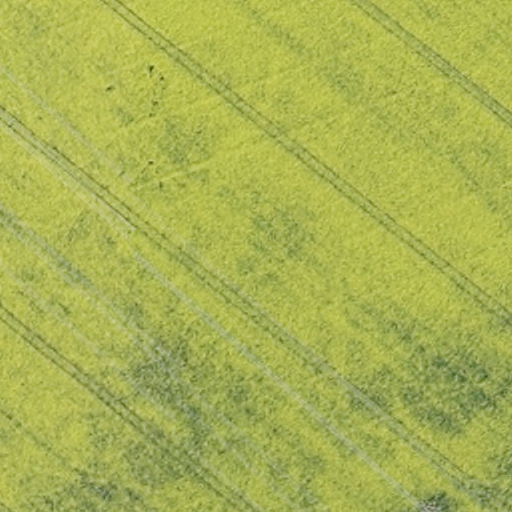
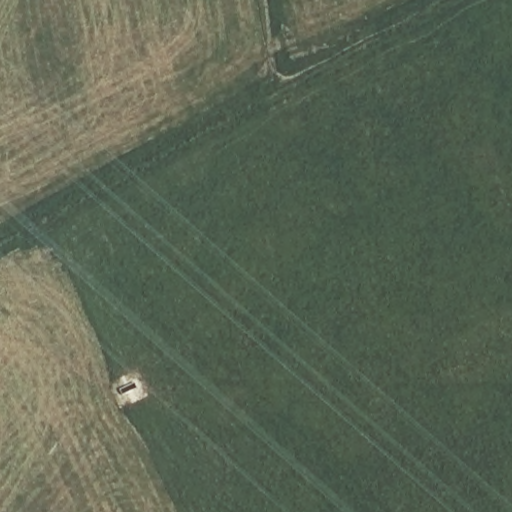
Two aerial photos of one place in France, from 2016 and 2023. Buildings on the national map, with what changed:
[]

